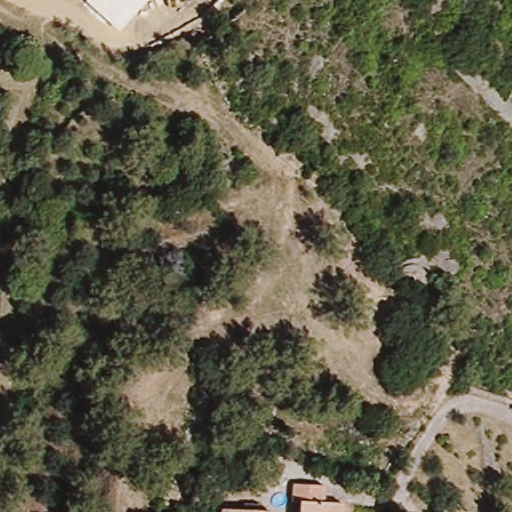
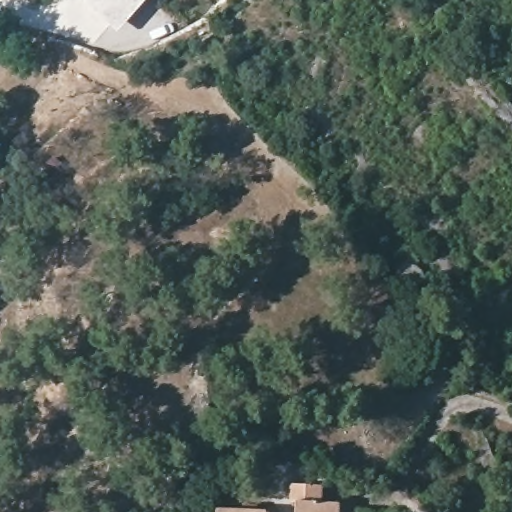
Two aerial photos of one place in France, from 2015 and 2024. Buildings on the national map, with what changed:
unchanged [(86,2),(88,0),(148,0),(120,32),(86,2)]
unchanged [(410,266),(413,266),(415,267),(418,268),(420,269),(422,271),(423,272),(425,275),(425,277),(425,279),(425,282),(425,285),(424,287),(423,290),(420,292),(417,294),(414,294),(412,295),(409,294),(405,293),(403,292),(401,290),(400,287),(399,285),(399,282),(399,279),(399,276),(400,273),(402,271),(404,269),(405,268),(408,267),(410,266)]
unchanged [(305,502),(298,502),(299,485),(329,486),(329,503),(345,503),(345,512),(305,512),(305,502)]
unchanged [(214,509),(263,511),(263,512),(214,512),(214,509)]

